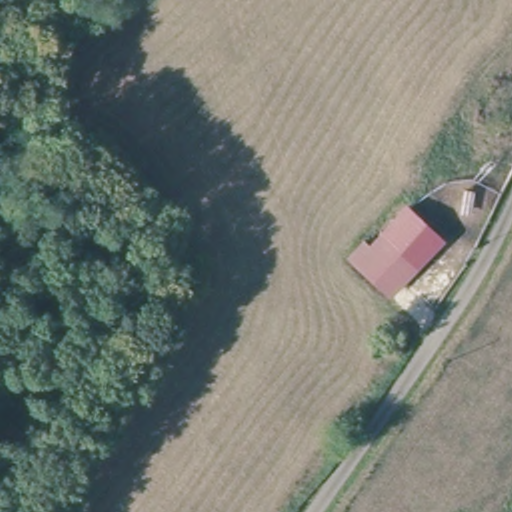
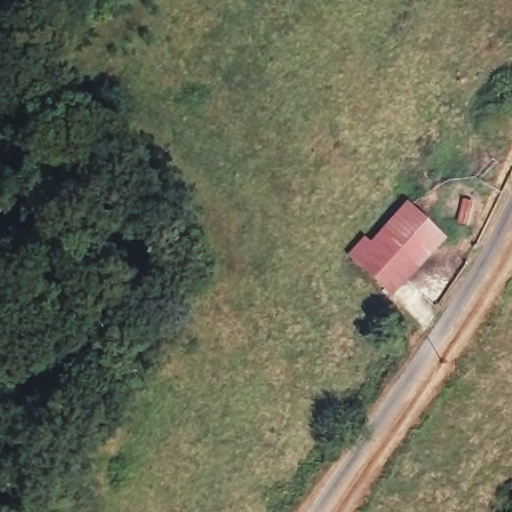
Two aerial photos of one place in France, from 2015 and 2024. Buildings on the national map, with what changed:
unchanged [(448,233),(389,295),(348,248),(368,232),(372,235),(409,200),(448,233)]

